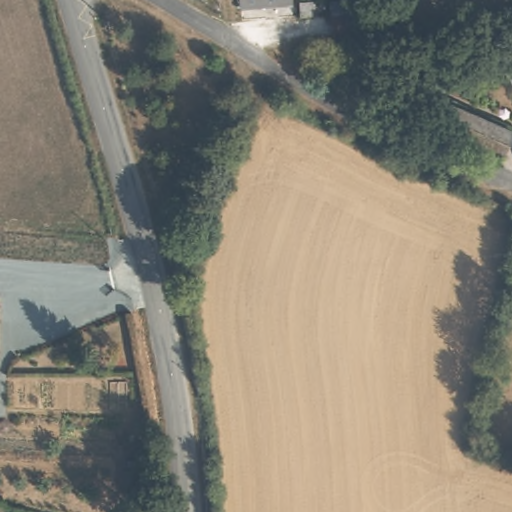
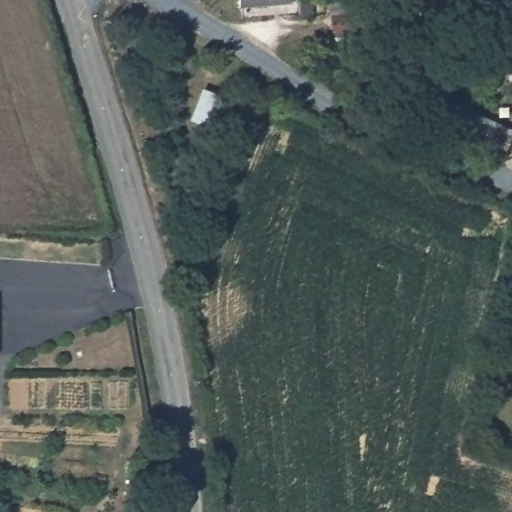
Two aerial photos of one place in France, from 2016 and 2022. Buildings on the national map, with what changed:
unchanged [(243,9),(243,0),(296,0),(296,3),(243,9)]
unchanged [(340,23),(337,3),(358,0),(360,21),(340,23)]
unchanged [(306,17),(306,3),(321,1),(321,17),(306,17)]
unchanged [(448,96),(512,125),(512,157),(436,121),(448,96)]

